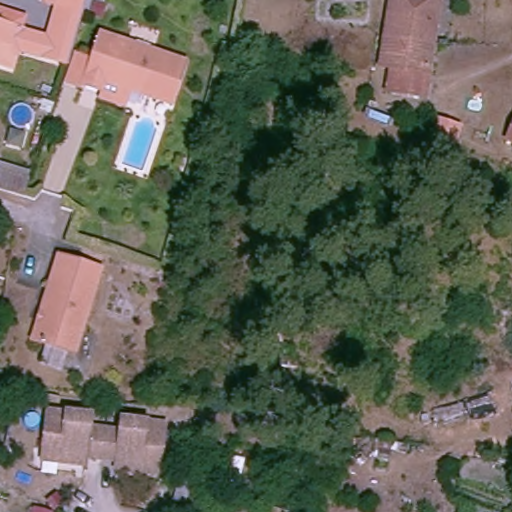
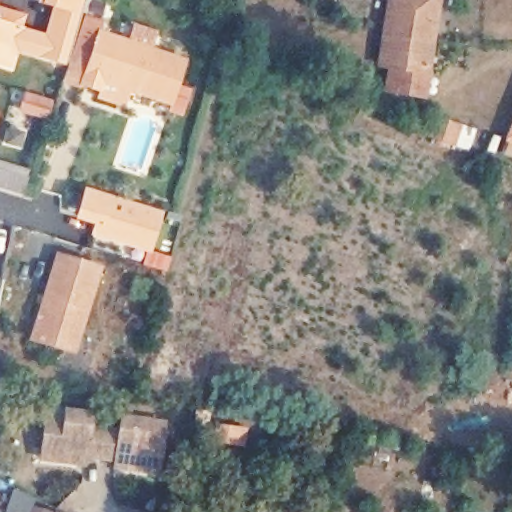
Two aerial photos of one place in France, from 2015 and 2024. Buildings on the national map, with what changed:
unchanged [(22,8),(19,21),(57,32),(66,2),(61,0),(90,0),(72,59),(14,40),(10,55),(0,52),(0,2),(22,8)]
unchanged [(390,0),(438,0),(432,36),(386,29),(390,0)]
unchanged [(416,88),(385,84),(388,63),(380,60),(386,29),(432,36),(428,68),(425,90),(416,88)]
unchanged [(112,91),(114,84),(102,79),(99,92),(81,86),(97,34),(181,60),(167,101),(129,89),(127,96),(112,91)]
unchanged [(437,107),(462,114),(457,133),(447,131),(432,127),(437,107)]
new [(512,122),(512,144),(504,141),(512,122)]
demolished [(512,125),(512,133),(508,132),(512,125)]
unchanged [(5,173),(10,157),(40,166),(36,184),(5,173)]
new [(84,186),(164,211),(151,252),(170,257),(165,272),(141,264),(146,251),(89,235),(92,225),(75,219),(84,186)]
unchanged [(102,274),(74,358),(34,343),(60,261),(102,274)]
unchanged [(46,444),(51,402),(96,407),(94,420),(109,422),(106,448),(87,446),(86,457),(57,455),(45,455),(46,444)]
unchanged [(137,461),(118,459),(119,450),(106,448),(109,422),(122,423),(123,409),(167,414),(164,456),(162,464),(137,461)]
new [(36,498),(34,503),(52,509),(51,512),(5,512),(12,489),(36,498)]
unchanged [(290,512),(270,512),(272,504),(291,509),(290,512)]

